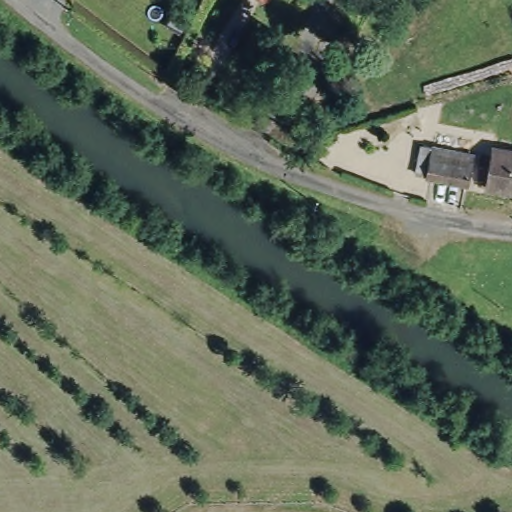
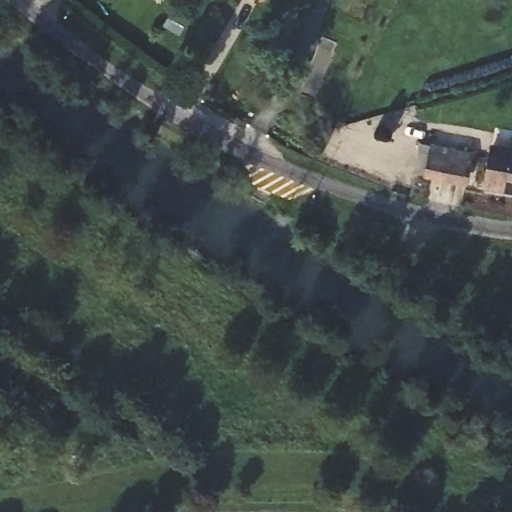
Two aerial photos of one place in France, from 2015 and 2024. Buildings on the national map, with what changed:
unchanged [(429,132),(472,143),(466,172),(422,161),(429,132)]
unchanged [(493,141),(512,145),(512,186),(483,180),(493,141)]

